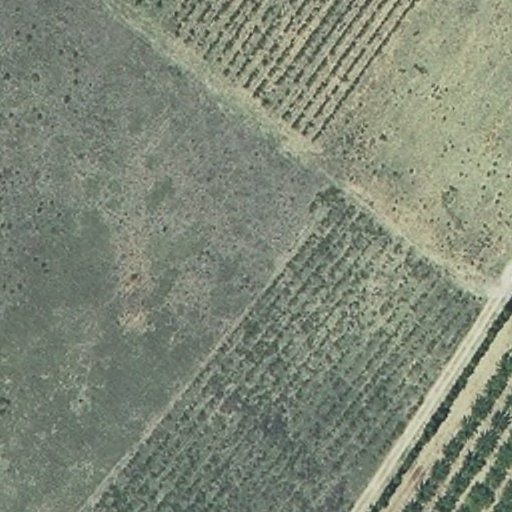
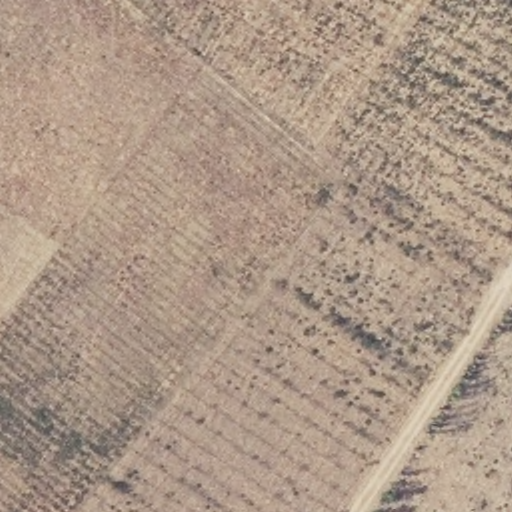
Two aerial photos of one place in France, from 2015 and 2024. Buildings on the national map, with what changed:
[]

